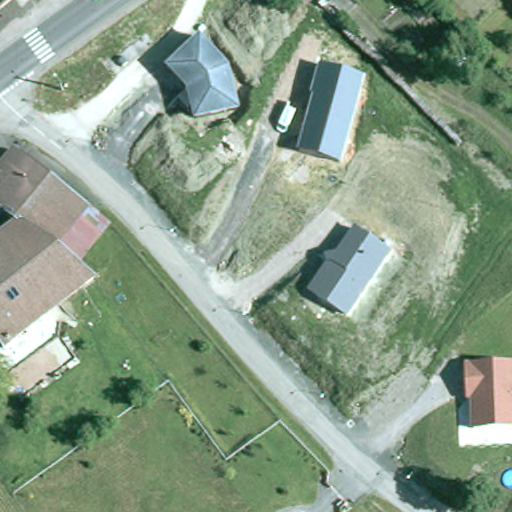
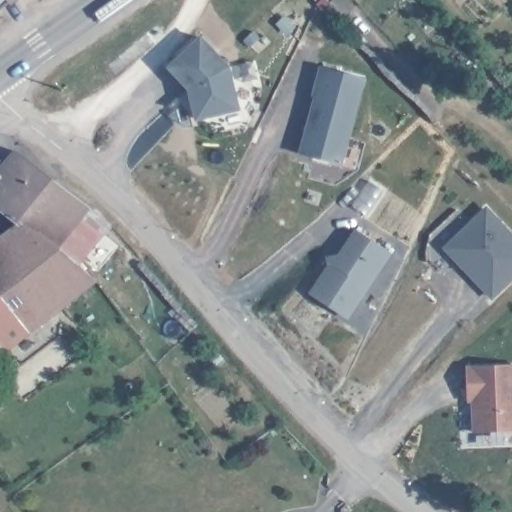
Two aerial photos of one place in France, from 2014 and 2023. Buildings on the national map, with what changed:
unchanged [(13,0),(16,0),(13,1),(13,0)]
unchanged [(200,35),(229,67),(240,112),(194,122),(187,88),(167,68),(200,35)]
unchanged [(319,67),(364,79),(343,163),(297,152),(319,67)]
unchanged [(50,249),(23,227),(0,207),(0,169),(2,170),(18,150),(88,209),(84,214),(50,249)]
new [(512,235),(512,282),(492,301),(442,248),(486,207),(512,235)]
unchanged [(105,231),(71,266),(50,249),(84,214),(105,231)]
unchanged [(97,287),(2,350),(0,348),(0,242),(23,227),(50,249),(71,266),(97,287)]
unchanged [(325,264),(323,255),(337,254),(352,230),(392,253),(349,320),(309,294),(325,264)]
unchanged [(512,364),(512,431),(472,432),(472,401),(467,400),(466,364),(512,364)]

